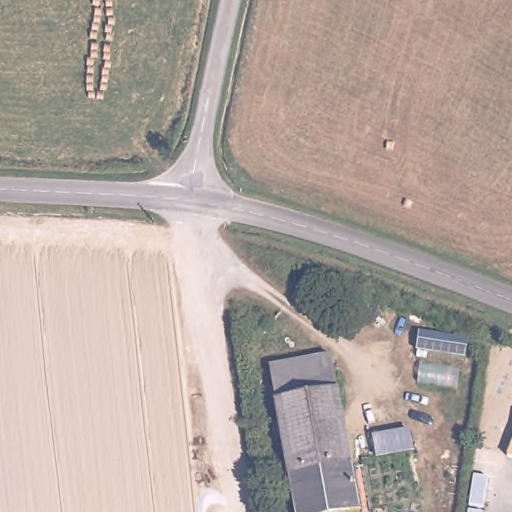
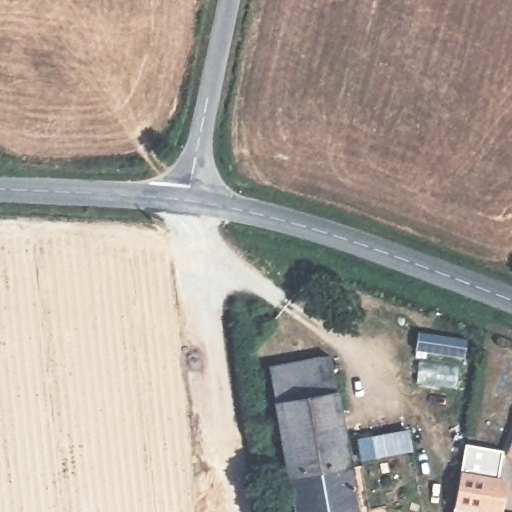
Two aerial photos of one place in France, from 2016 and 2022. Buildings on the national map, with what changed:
unchanged [(293,482),(268,367),(327,354),(354,471),(293,482)]
new [(499,476),(509,478),(504,512),(453,512),(464,442),(503,450),(499,476)]
unchanged [(512,451),(512,459),(509,457),(512,451)]
unchanged [(293,482),(354,471),(361,512),(300,512),(293,482)]

